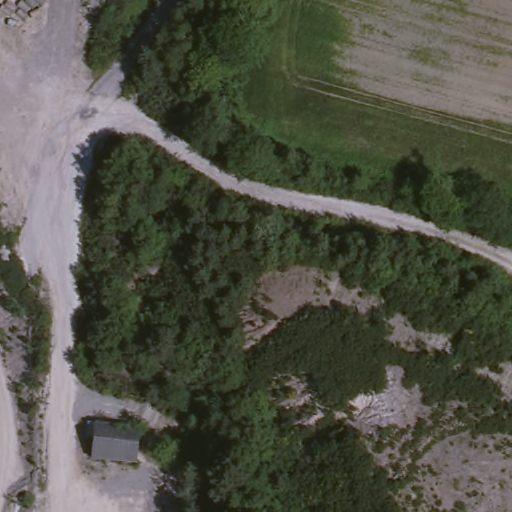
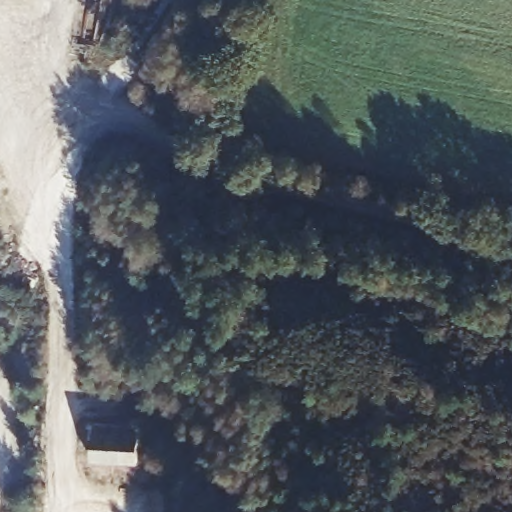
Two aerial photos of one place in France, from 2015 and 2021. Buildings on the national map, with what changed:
unchanged [(99,414),(146,420),(141,465),(96,461),(99,414)]

